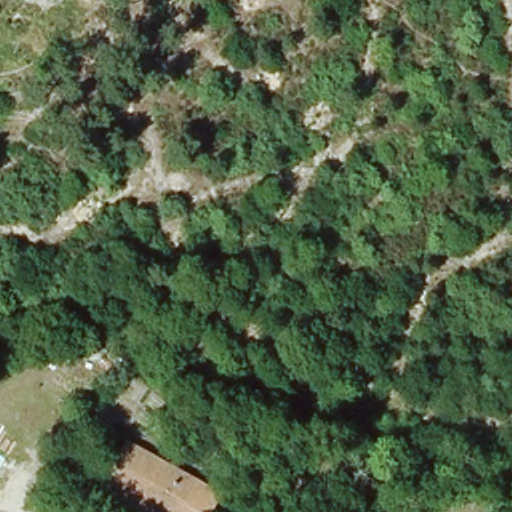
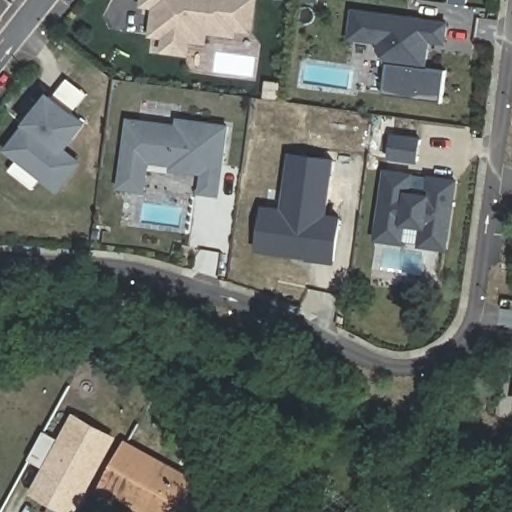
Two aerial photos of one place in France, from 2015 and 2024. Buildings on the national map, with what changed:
new [(142,0),(254,0),(249,30),(233,27),(233,34),(205,30),(203,41),(187,39),(186,52),(162,50),(163,36),(150,34),(152,15),(154,6),(141,4),(142,0)]
new [(427,40),(423,67),(445,70),(440,102),(382,94),(386,61),(377,49),(378,41),(348,37),(352,10),(445,22),(443,42),(427,40)]
new [(6,149),(48,96),(83,122),(71,138),(73,139),(87,151),(57,189),(41,176),(31,187),(8,169),(17,157),(6,149)]
new [(199,194),(201,174),(202,174),(170,170),(171,166),(146,162),(143,192),(118,188),(127,121),(176,127),(177,121),(226,127),(220,167),(217,196),(199,194)]
new [(389,135),(419,139),(416,160),(386,156),(389,135)]
new [(309,257),(310,250),(283,247),(282,252),(257,249),(262,208),(282,211),(290,155),(330,160),(323,216),(338,218),(333,260),(309,257)]
new [(426,196),(428,177),(454,181),(444,248),(419,245),(422,226),(403,223),(400,242),(375,238),(384,171),(410,175),(407,192),(426,196)]
new [(104,433),(112,437),(102,456),(72,512),(69,512),(33,492),(45,469),(28,460),(43,431),(60,441),(74,417),(104,433)]
unchanged [(152,512),(110,488),(130,451),(213,497),(205,512),(152,512)]

